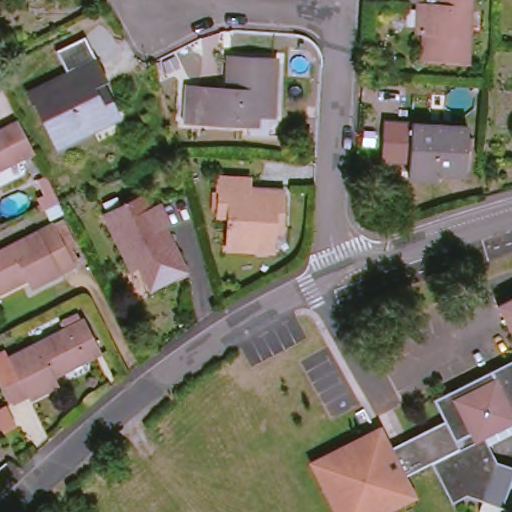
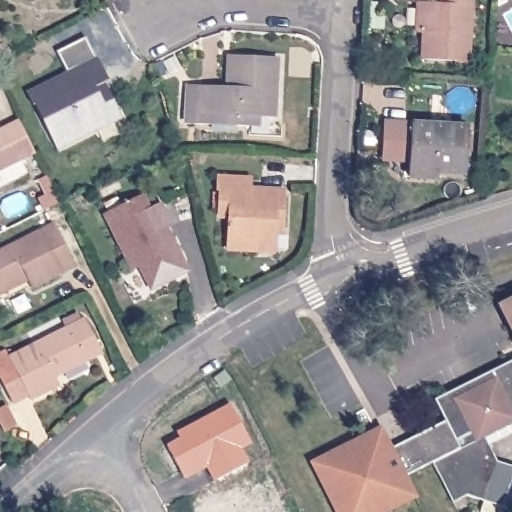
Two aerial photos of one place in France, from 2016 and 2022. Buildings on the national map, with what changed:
unchanged [(472,67),(427,65),(429,38),(423,37),(425,9),(432,9),(432,4),(406,2),(406,0),(475,0),(472,67)]
unchanged [(196,128),(198,91),(209,92),(209,98),(237,100),(240,62),(284,64),(281,123),(260,122),(260,132),(207,129),(196,128)]
unchanged [(61,154),(35,102),(64,87),(62,85),(102,64),(109,77),(106,89),(99,92),(102,98),(111,94),(122,117),(96,130),(98,135),(61,154)]
unchanged [(0,173),(0,132),(24,121),(40,154),(0,173)]
unchanged [(419,165),(412,165),(412,158),(392,156),(394,127),(478,133),(475,180),(447,177),(447,184),(417,182),(419,165)]
unchanged [(256,191),(255,209),(265,209),(265,201),(291,202),(289,237),(282,237),(281,261),(259,260),(259,257),(232,256),(234,222),(223,222),(224,190),(256,191)]
unchanged [(111,219),(146,202),(152,215),(163,210),(174,232),(164,237),(167,247),(174,244),(189,276),(170,285),(168,281),(154,288),(146,272),(138,275),(111,219)]
unchanged [(0,295),(0,257),(64,225),(85,267),(41,289),(37,282),(5,298),(2,293),(0,295)]
unchanged [(503,306),(512,301),(512,324),(503,306)]
unchanged [(60,378),(63,386),(34,400),(32,396),(17,403),(0,371),(16,363),(14,359),(71,330),(67,323),(83,316),(87,322),(90,321),(105,350),(107,355),(60,378)]
unchanged [(450,422),(439,401),(512,363),(512,426),(489,437),(502,462),(512,466),(512,492),(507,508),(472,497),(457,504),(437,464),(430,467),(420,447),(416,439),(450,422)]
new [(252,442),(245,448),(252,462),(215,482),(208,467),(185,479),(167,445),(181,437),(177,431),(231,402),(252,442)]
unchanged [(20,427),(8,432),(0,416),(0,411),(10,407),(20,427)]
unchanged [(345,451),(347,455),(361,448),(358,444),(385,431),(397,454),(409,448),(406,444),(416,439),(420,447),(430,467),(409,478),(419,497),(390,512),(342,512),(318,464),(345,451)]

